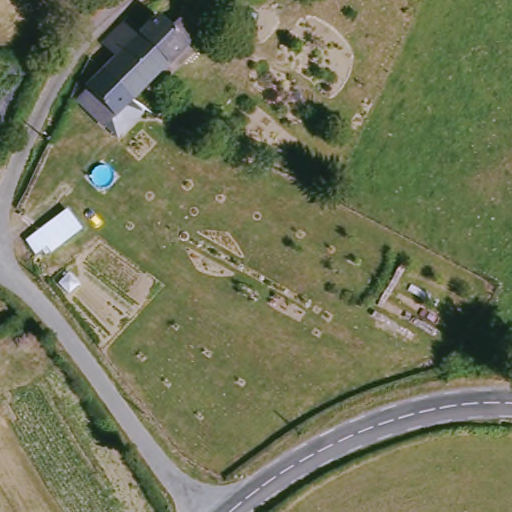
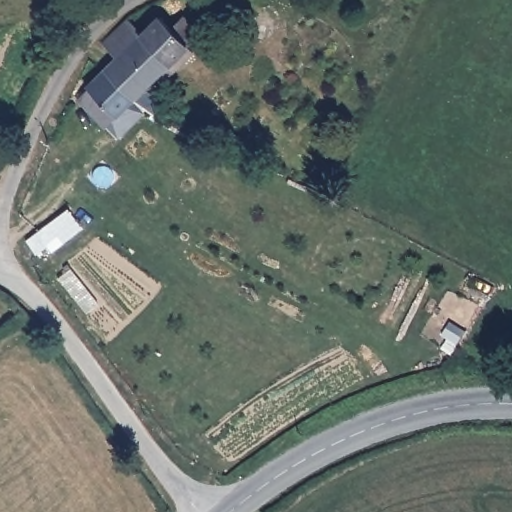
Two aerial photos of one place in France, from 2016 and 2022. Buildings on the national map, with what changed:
unchanged [(162,82),(155,75),(130,100),(102,72),(114,61),(100,47),(129,24),(130,24),(140,35),(157,19),(170,32),(182,20),(197,34),(185,46),(192,53),(162,82)]
unchanged [(130,100),(104,126),(79,102),(89,92),(85,89),(102,72),(130,100)]

